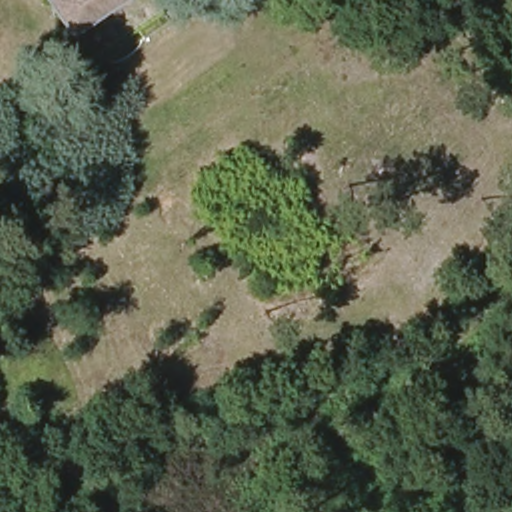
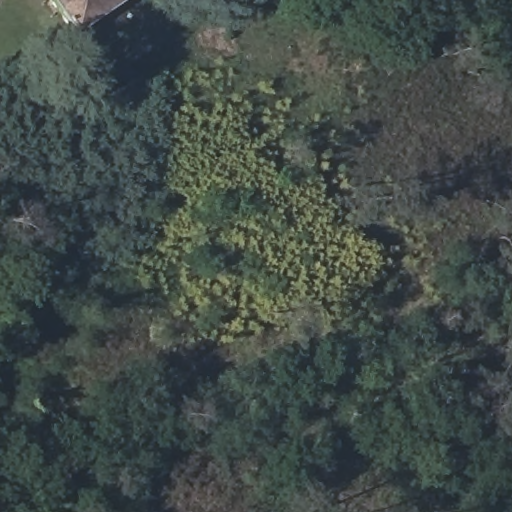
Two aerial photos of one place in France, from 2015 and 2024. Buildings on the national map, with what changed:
unchanged [(48,0),(128,0),(66,41),(48,0)]

